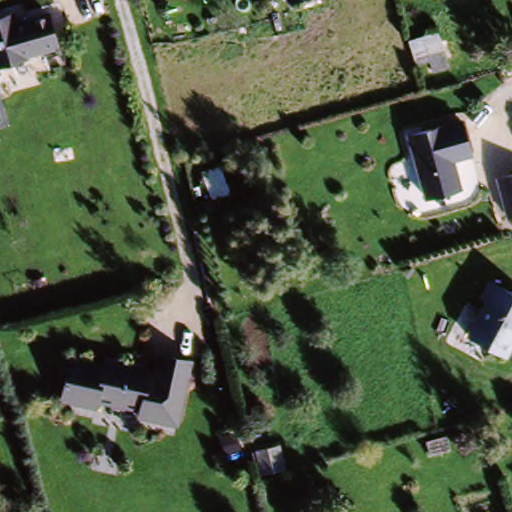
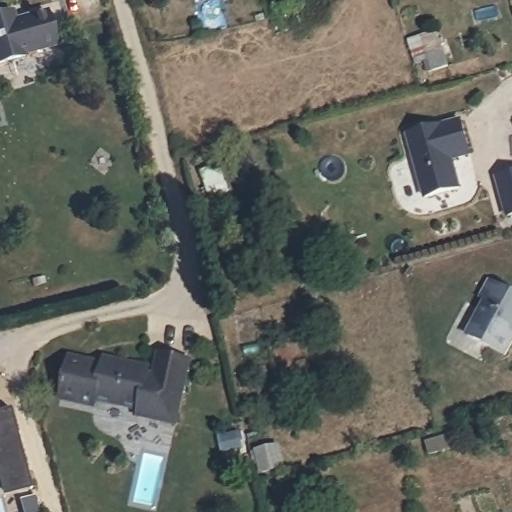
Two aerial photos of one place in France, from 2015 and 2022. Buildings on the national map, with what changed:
unchanged [(328,5),(304,10),(302,0),(327,0),(328,5)]
unchanged [(15,19),(31,15),(31,14),(47,10),(56,42),(24,51),(25,53),(0,59),(0,16),(14,13),(15,19)]
unchanged [(411,39),(438,29),(445,48),(447,55),(441,57),(432,60),(428,50),(416,54),(411,39)]
unchanged [(458,117),(467,152),(450,156),(457,186),(423,195),(406,130),(458,117)]
unchanged [(222,160),(237,195),(215,206),(198,168),(222,160)]
unchanged [(512,171),(512,211),(506,212),(497,174),(512,171)]
unchanged [(512,290),(512,346),(508,353),(470,333),(489,298),(484,295),(493,280),(512,290)]
unchanged [(193,363),(178,427),(141,418),(142,412),(100,402),(98,408),(63,401),(73,359),(106,367),(108,360),(153,371),(151,381),(157,382),(163,356),(193,363)]
new [(33,485),(5,492),(0,474),(0,410),(11,407),(33,485)]
unchanged [(235,440),(240,458),(224,462),(220,444),(235,440)]
unchanged [(280,446),(285,468),(265,473),(258,451),(280,446)]

